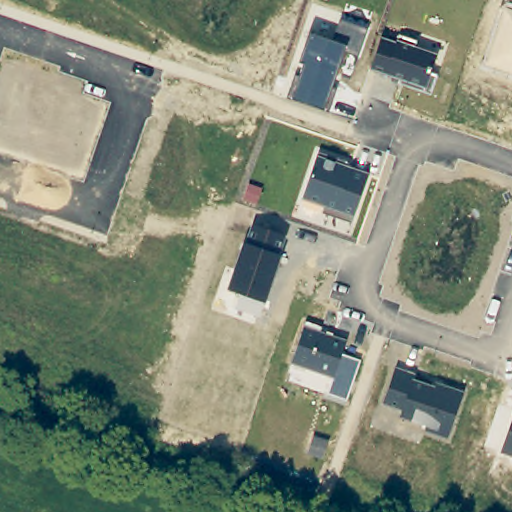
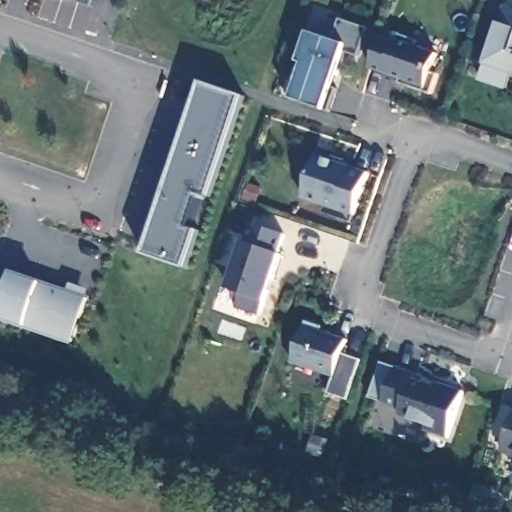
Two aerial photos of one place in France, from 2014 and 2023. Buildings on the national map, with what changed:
new [(92,7),(71,0),(95,0),(92,7)]
unchanged [(484,67),(504,2),(512,5),(512,76),(484,67)]
unchanged [(293,102),(287,100),(295,75),(301,76),(306,64),(300,62),(310,33),(333,41),(341,20),(368,29),(359,56),(345,51),(332,88),(336,89),(328,112),(293,102)]
unchanged [(391,82),(393,77),(372,70),(383,39),(397,42),(398,38),(437,52),(430,73),(437,76),(429,94),(391,82)]
new [(210,196),(201,194),(189,229),(197,231),(185,266),(145,253),(202,85),(242,98),(210,196)]
unchanged [(322,213),(325,206),(303,200),(318,152),(349,162),(349,167),(369,173),(352,223),(322,213)]
unchanged [(228,291),(246,241),(251,225),(286,237),(281,254),(266,304),(228,291)]
new [(42,282),(71,290),(72,284),(90,290),(74,345),(27,329),(0,321),(0,314),(13,272),(42,282)]
unchanged [(299,384),(304,367),(292,363),(305,323),(333,332),(333,337),(347,341),(342,354),(360,360),(346,400),(299,384)]
unchanged [(426,431),(427,426),(398,417),(401,409),(383,404),(396,367),(416,374),(414,380),(438,388),(438,384),(464,392),(449,438),(426,431)]
unchanged [(501,454),(512,420),(512,457),(501,454)]

